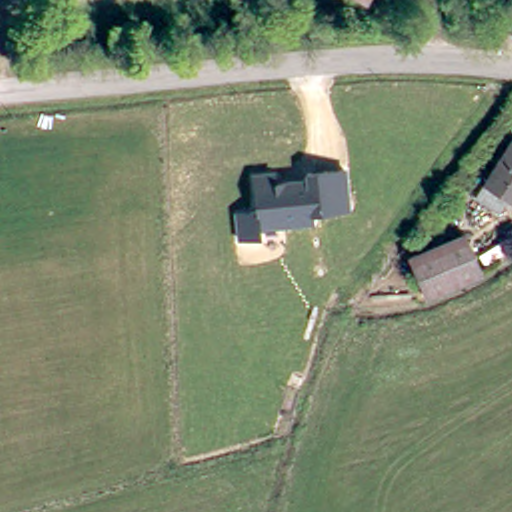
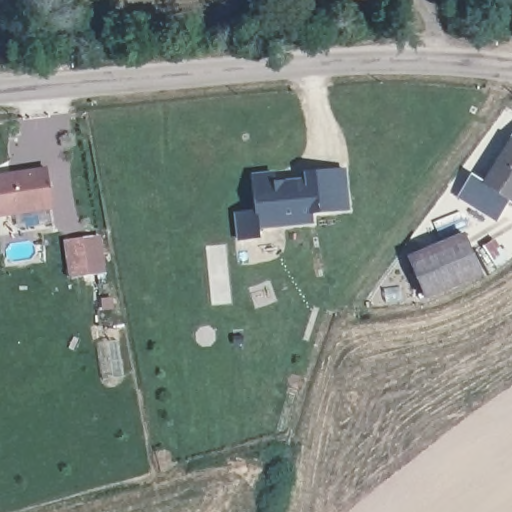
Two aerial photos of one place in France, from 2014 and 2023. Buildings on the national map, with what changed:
unchanged [(337,0),(366,0),(360,12),(337,0)]
unchanged [(494,180),(512,144),(512,199),(511,201),(489,189),(494,180)]
new [(55,209),(0,217),(0,174),(47,167),(55,209)]
unchanged [(348,212),(317,219),(260,224),(261,238),(238,240),(234,211),(253,210),(251,176),(271,173),(272,187),(282,177),(306,176),(342,167),(348,212)]
new [(102,235),(107,273),(87,277),(82,237),(102,235)]
unchanged [(486,267),(426,286),(417,252),(477,236),(481,242),(486,267)]

